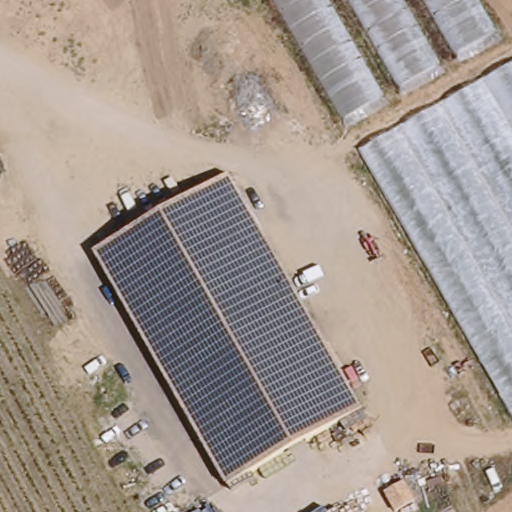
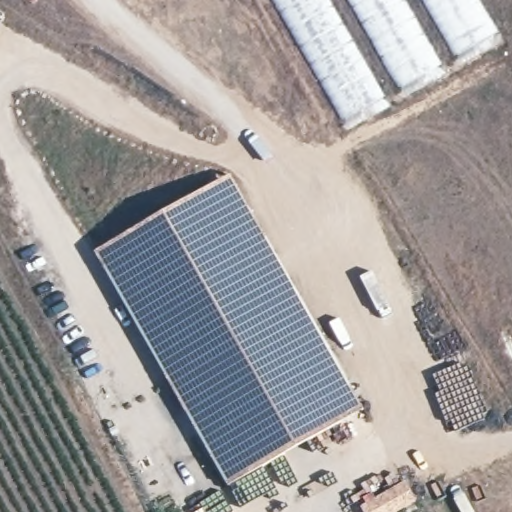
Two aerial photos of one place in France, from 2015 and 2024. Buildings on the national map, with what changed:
unchanged [(274,0),(328,0),(383,96),(343,120),(274,0)]
unchanged [(349,0),(403,0),(440,65),(400,90),(349,0)]
unchanged [(424,0),(479,0),(498,34),(457,56),(424,0)]
demolished [(358,154),(512,65),(512,421),(358,154)]
unchanged [(218,490),(90,257),(228,177),(359,407),(218,490)]
new [(398,512),(359,512),(356,507),(404,480),(417,501),(398,512)]

